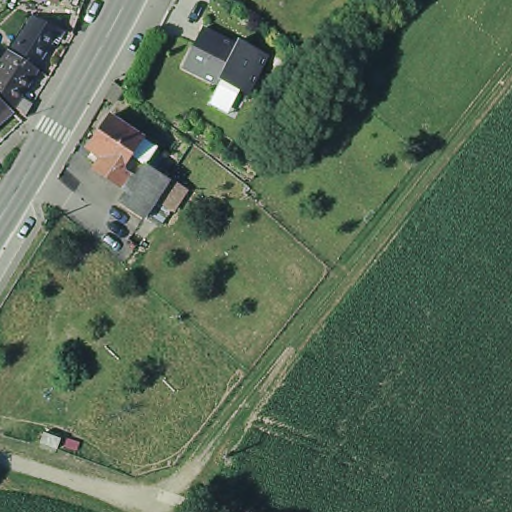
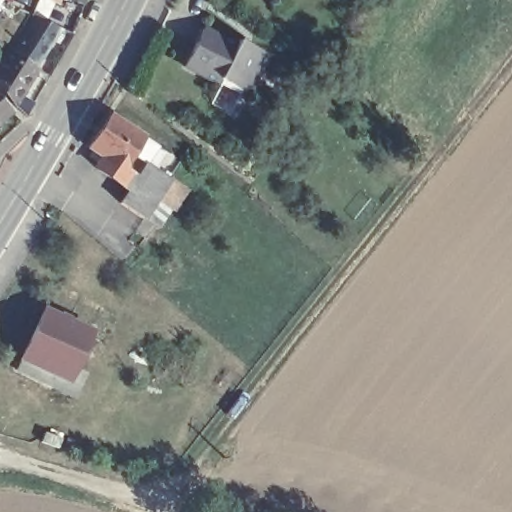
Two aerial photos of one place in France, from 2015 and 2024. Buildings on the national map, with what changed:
unchanged [(47,0),(53,0),(52,2),(47,0)]
unchanged [(63,33),(67,35),(64,40),(60,37),(38,73),(13,57),(37,20),(63,33)]
unchanged [(239,55),(241,50),(269,64),(250,102),(222,88),(220,93),(186,76),(205,38),(239,55)]
unchanged [(28,121),(15,108),(0,93),(0,76),(13,57),(38,73),(23,95),(37,105),(28,121)]
unchanged [(13,115),(0,126),(0,102),(13,115)]
unchanged [(138,191),(144,183),(136,177),(127,190),(103,173),(110,162),(95,152),(117,120),(151,142),(165,151),(154,168),(177,183),(161,206),(150,223),(127,207),(138,191)]
new [(21,357),(43,312),(90,334),(73,368),(83,373),(73,395),(17,369),(22,358),(21,357)]
unchanged [(66,433),(56,445),(43,436),(54,423),(66,433)]

